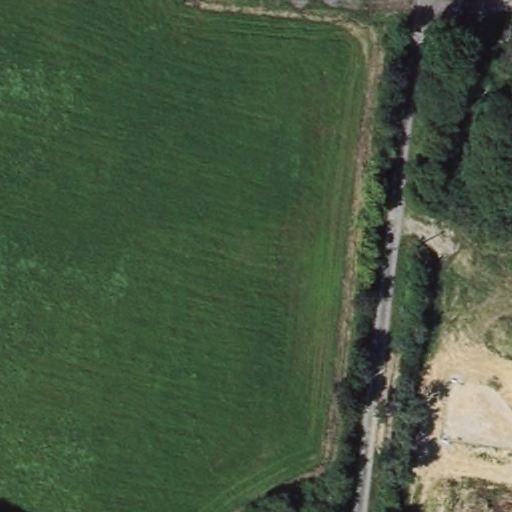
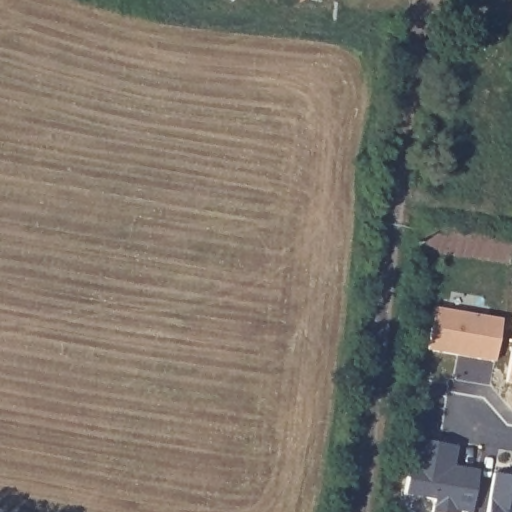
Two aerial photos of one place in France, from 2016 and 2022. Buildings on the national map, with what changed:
new [(420,343),(428,299),(496,311),(489,353),(472,350),(451,348),(420,343)]
new [(469,512),(455,509),(454,512),(433,512),(435,500),(405,494),(413,439),(453,445),(451,465),(477,470),(471,512),(469,512)]
new [(512,473),(512,512),(479,512),(486,468),(512,473)]

